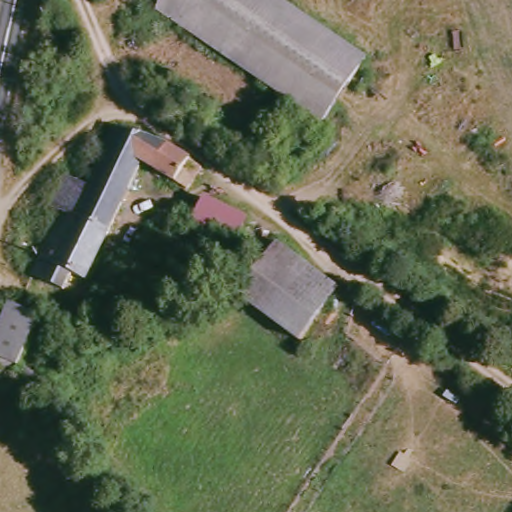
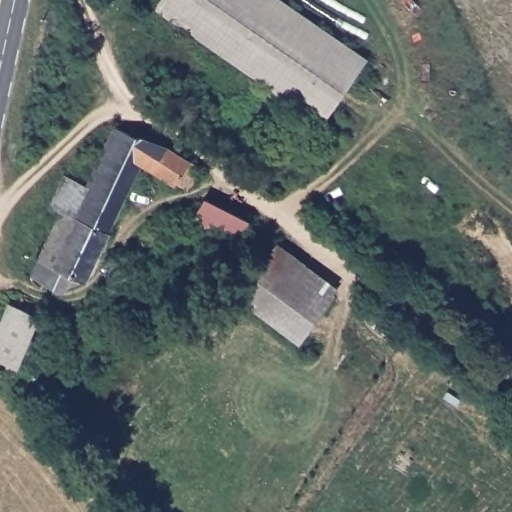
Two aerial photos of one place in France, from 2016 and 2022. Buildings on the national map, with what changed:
unchanged [(167,0),(283,0),(372,61),(327,125),(160,12),(167,0)]
unchanged [(193,185),(145,164),(92,277),(75,270),(67,286),(38,272),(67,208),(55,202),(70,172),(90,180),(118,122),(186,153),(204,164),(193,185)]
unchanged [(237,244),(197,218),(212,196),(252,222),(237,244)]
unchanged [(309,335),(249,291),(279,250),(338,294),(309,335)]
unchanged [(0,337),(22,289),(49,302),(31,346),(59,372),(45,390),(0,349),(0,337)]

